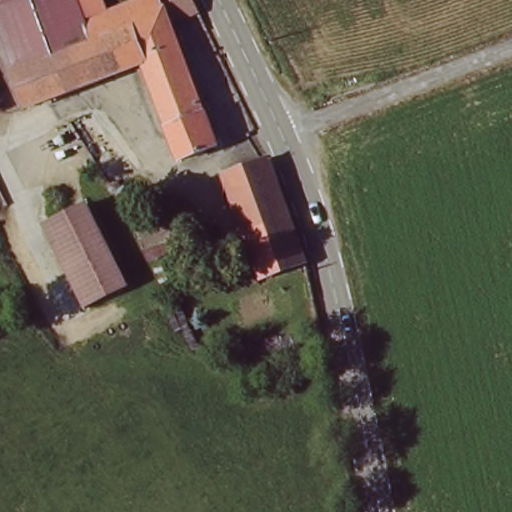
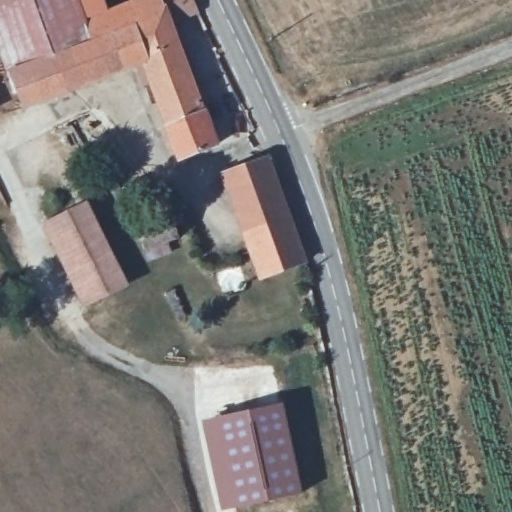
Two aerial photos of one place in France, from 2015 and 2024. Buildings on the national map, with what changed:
unchanged [(95,40),(40,62),(17,72),(5,36),(0,22),(0,0),(82,0),(89,19),(95,40)]
unchanged [(106,11),(129,1),(132,0),(197,0),(201,9),(181,18),(175,20),(210,115),(175,127),(147,60),(110,76),(95,40),(89,19),(106,11)]
unchanged [(97,81),(53,98),(30,106),(17,72),(40,62),(95,40),(110,76),(97,81)]
unchanged [(210,115),(221,147),(188,157),(175,127),(210,115)]
unchanged [(226,174),(271,160),(280,187),(233,200),(226,174)]
unchanged [(281,188),(284,199),(296,249),(299,265),(254,277),(233,200),(280,187),(281,188)]
unchanged [(129,282),(80,305),(39,221),(90,199),(129,282)]
demolished [(172,220),(178,241),(150,250),(143,227),(172,220)]
new [(282,401),(302,491),(221,510),(202,420),(282,401)]

